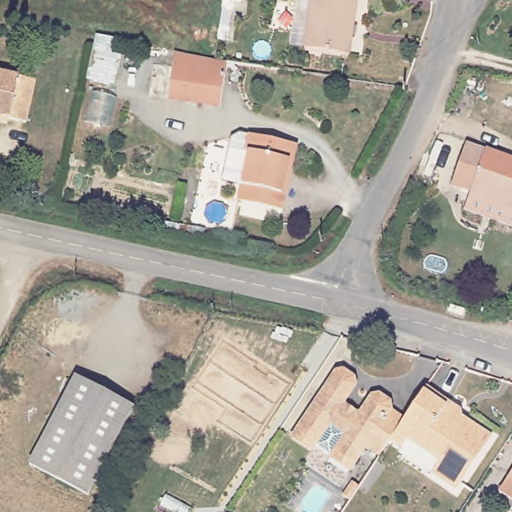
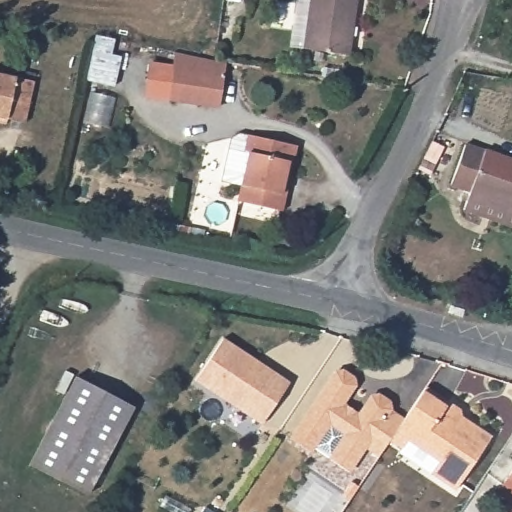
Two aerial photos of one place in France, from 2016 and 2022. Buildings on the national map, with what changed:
unchanged [(351,54),(307,47),(313,0),(358,0),(351,54)]
unchanged [(166,97),(171,65),(173,50),(214,59),(225,61),(223,72),(218,105),(166,97)]
unchanged [(34,79),(26,120),(9,116),(8,120),(0,118),(0,72),(34,79)]
unchanged [(282,210),(243,201),(254,154),(250,150),(253,135),(301,145),(296,172),(287,211),(282,210)]
unchanged [(467,145),(512,159),(512,208),(452,185),(467,145)]
new [(224,337),(292,381),(261,426),(194,381),(224,337)]
unchanged [(348,470),(328,457),(345,433),(328,422),(310,450),(290,437),(333,371),(341,370),(352,376),(353,384),(341,402),(357,413),(370,395),(377,393),(387,400),(389,408),(388,409),(402,418),(393,431),(388,439),(378,454),(372,450),(365,445),(348,470)]
unchanged [(137,408),(90,496),(31,465),(77,376),(137,408)]
unchanged [(424,385),(458,407),(460,415),(490,434),(455,488),(430,471),(437,460),(406,438),(400,447),(388,439),(393,431),(402,418),(424,385)]
unchanged [(512,474),(512,495),(502,488),(512,474)]

